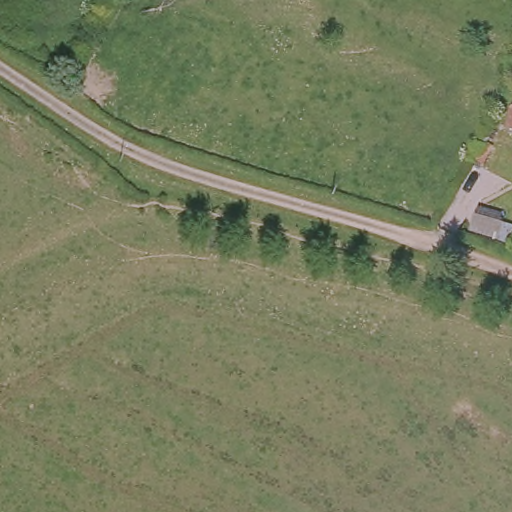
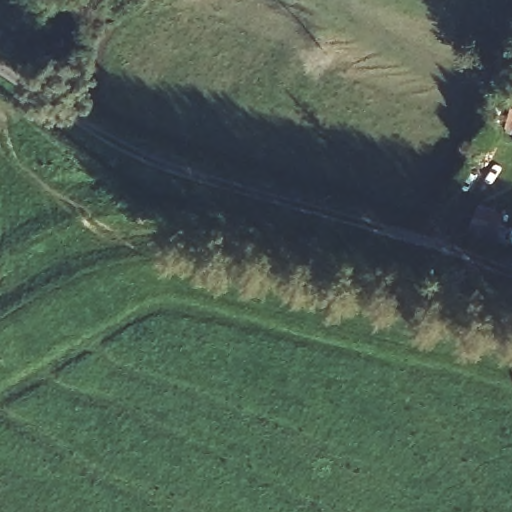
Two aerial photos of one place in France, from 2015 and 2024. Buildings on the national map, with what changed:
unchanged [(505,101),(512,103),(512,129),(498,124),(505,101)]

